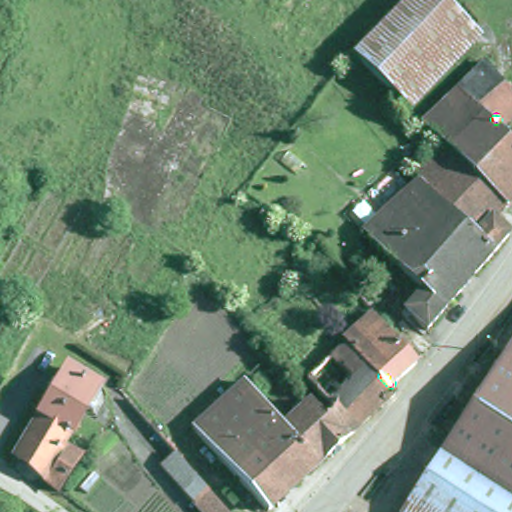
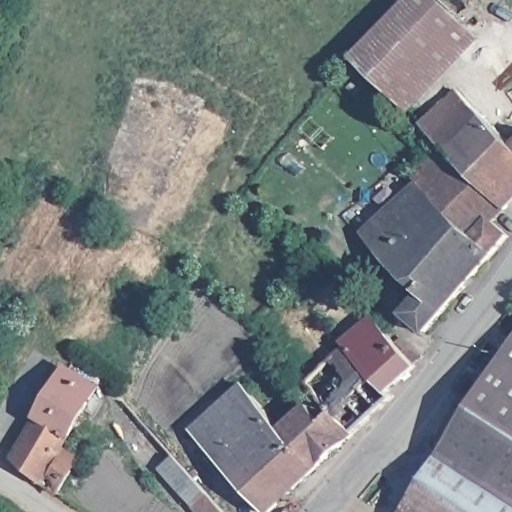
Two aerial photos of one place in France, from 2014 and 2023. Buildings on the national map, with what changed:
unchanged [(463,22),(470,32),(402,102),(358,62),(403,15),(418,0),(440,0),(463,22)]
unchanged [(512,110),(512,128),(499,143),(512,156),(512,208),(503,217),(437,153),(415,133),(480,71),(512,110)]
unchanged [(492,229),(510,243),(425,336),(423,339),(399,321),(417,298),(412,293),(357,244),(357,243),(407,191),(408,191),(403,185),(437,153),(503,217),(492,229)]
unchanged [(395,341),(417,362),(419,365),(394,390),(348,347),(345,344),(375,320),(382,327),(387,332),(395,341)]
unchanged [(397,340),(400,337),(403,340),(407,338),(418,351),(423,355),(417,362),(420,364),(419,365),(395,341),(397,340)]
unchanged [(399,512),(438,451),(463,414),(503,353),(512,341),(512,512),(399,512)]
unchanged [(400,396),(359,434),(339,415),(335,412),(307,386),(308,385),(298,376),(325,349),(335,359),(348,347),(394,390),(400,396)]
unchanged [(62,446),(79,459),(55,494),(10,459),(68,370),(97,388),(62,446)]
unchanged [(359,434),(277,510),(222,449),(198,469),(179,447),(243,390),(287,435),(315,409),(325,421),(329,426),(339,415),(359,434)]
unchanged [(193,512),(177,492),(190,481),(218,512),(193,512)]

